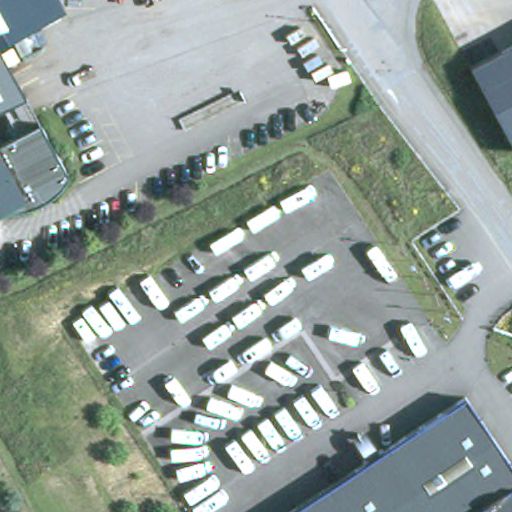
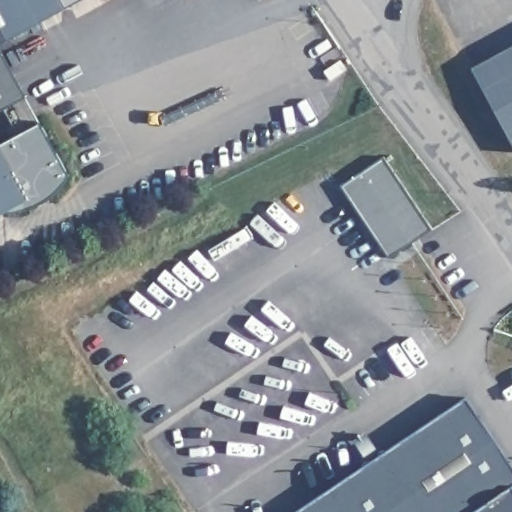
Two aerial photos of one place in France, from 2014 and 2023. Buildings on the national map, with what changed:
unchanged [(0,40),(0,0),(57,0),(61,7),(0,40)]
new [(57,0),(74,0),(61,7),(57,0)]
unchanged [(512,40),(512,133),(475,59),(512,40)]
unchanged [(0,106),(0,50),(25,94),(0,106)]
unchanged [(67,175),(62,184),(39,201),(2,210),(0,211),(0,142),(40,122),(67,175)]
new [(431,230),(388,257),(341,186),(382,158),(431,230)]
unchanged [(463,401),(512,473),(512,486),(510,488),(512,491),(512,512),(300,512),(463,401)]

